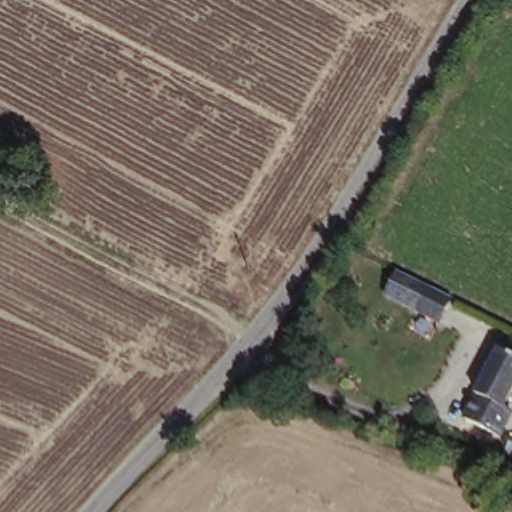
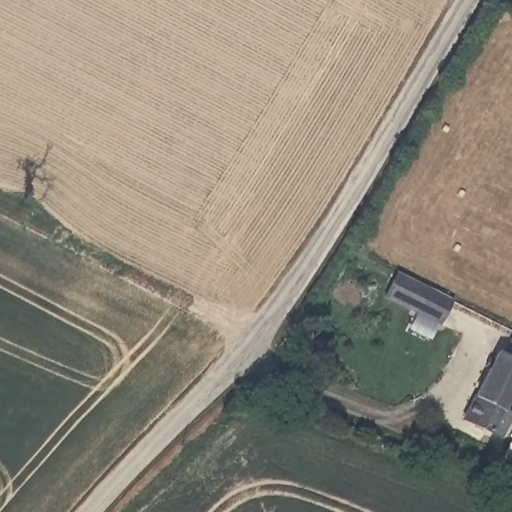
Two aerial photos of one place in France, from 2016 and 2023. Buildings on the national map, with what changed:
unchanged [(445,320),(421,309),(432,287),(456,298),(445,320)]
unchanged [(502,353),(512,358),(512,399),(506,410),(512,414),(512,423),(503,439),(467,420),(502,353)]

